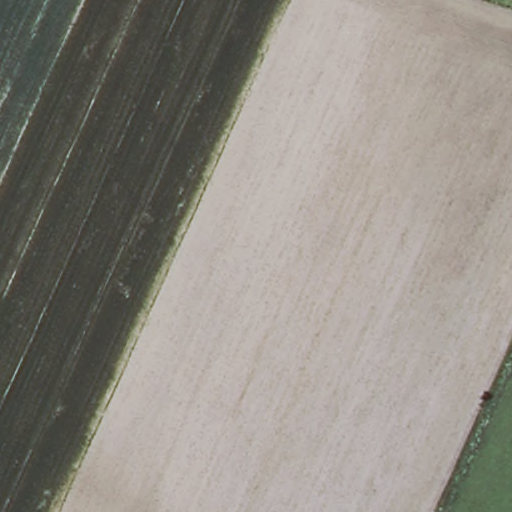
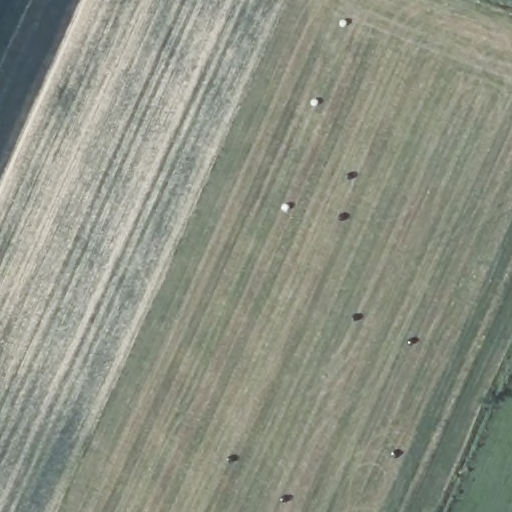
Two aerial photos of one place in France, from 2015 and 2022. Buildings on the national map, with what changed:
[]

